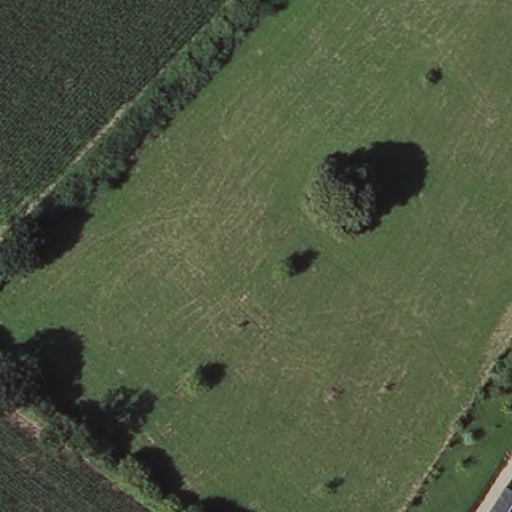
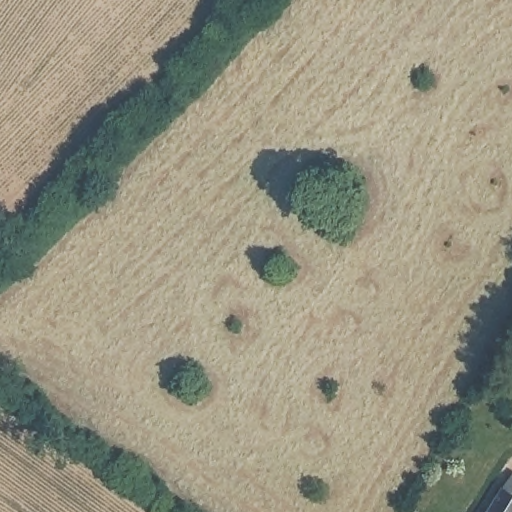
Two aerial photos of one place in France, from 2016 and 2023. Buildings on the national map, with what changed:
unchanged [(512,485),(512,512),(495,512),(512,485)]

